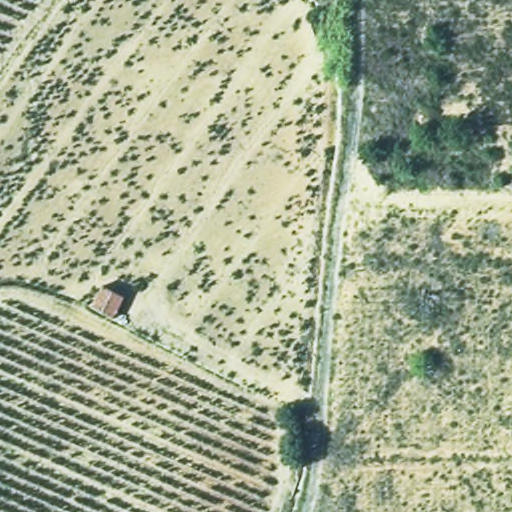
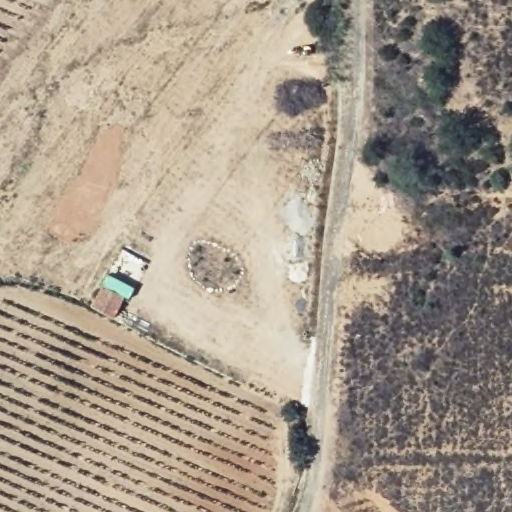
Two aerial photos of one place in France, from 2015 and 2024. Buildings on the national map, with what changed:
unchanged [(126,293),(113,313),(91,301),(100,281),(126,293)]

